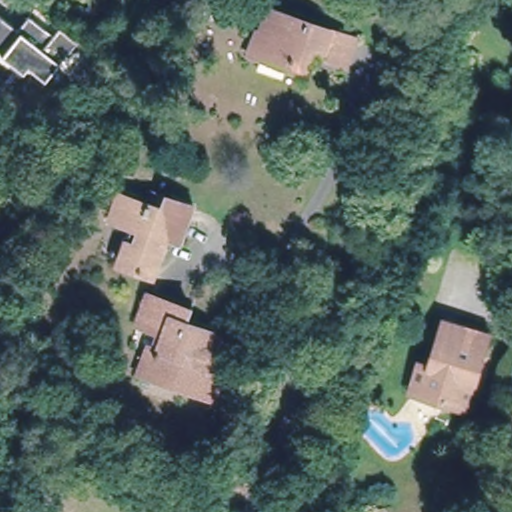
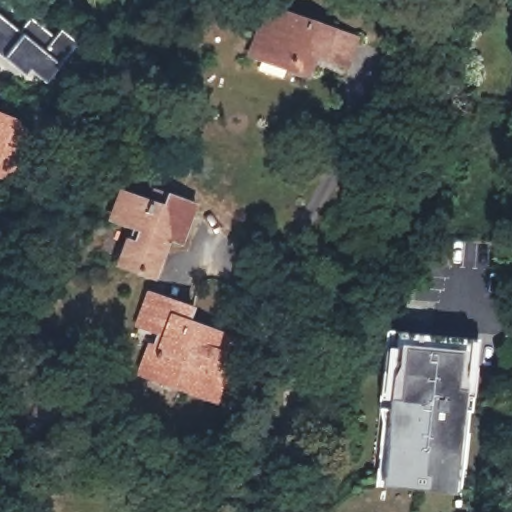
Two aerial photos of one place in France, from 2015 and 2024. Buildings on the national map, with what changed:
unchanged [(302,74),(246,58),(261,12),(286,20),(289,10),(333,23),(354,30),(345,60),(324,54),(311,50),(302,74)]
unchanged [(22,31),(26,34),(42,12),(86,45),(56,85),(39,72),(34,79),(0,53),(0,19),(2,16),(22,31)]
new [(13,116),(30,133),(18,170),(4,181),(0,180),(0,112),(13,116)]
unchanged [(112,221),(122,196),(170,214),(160,238),(171,241),(156,280),(137,275),(139,268),(120,263),(132,229),(112,221)]
unchanged [(177,388),(179,382),(144,370),(149,351),(142,348),(150,328),(132,322),(143,293),(187,308),(182,320),(230,337),(219,367),(229,369),(215,402),(177,388)]
demolished [(430,385),(440,352),(450,317),(494,327),(483,369),(475,367),(466,395),(430,385)]
new [(396,330),(468,338),(463,389),(461,409),(454,493),(381,486),(396,330)]

